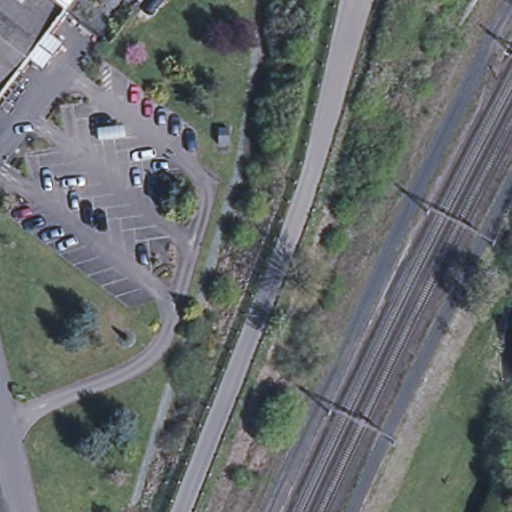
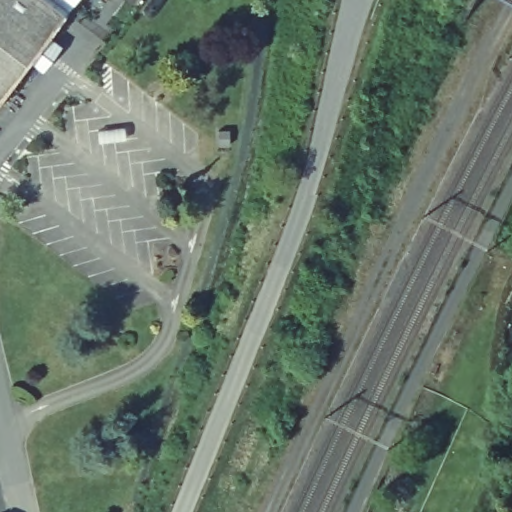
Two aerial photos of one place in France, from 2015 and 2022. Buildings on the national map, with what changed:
unchanged [(63,43),(43,70),(30,60),(0,98),(0,0),(75,0),(50,33),(63,43)]

